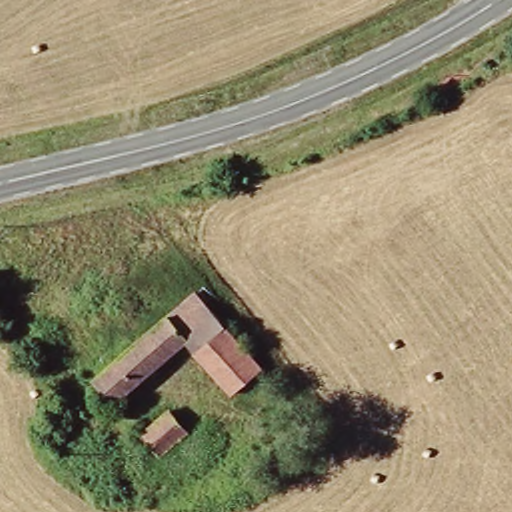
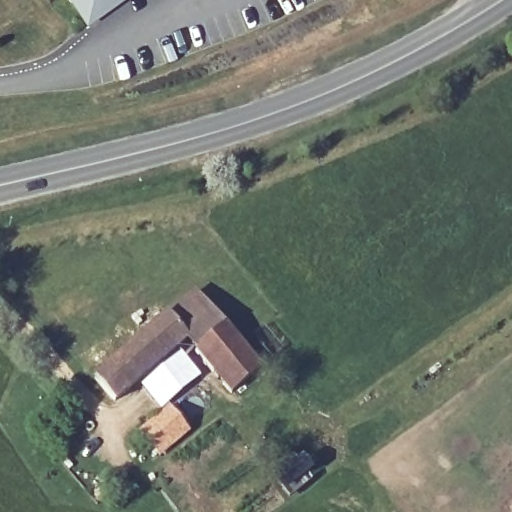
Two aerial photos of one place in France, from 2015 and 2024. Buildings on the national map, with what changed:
new [(69,0),(117,0),(86,23),(69,0)]
unchanged [(225,331),(195,357),(185,346),(187,344),(167,321),(194,297),(225,331)]
unchanged [(167,321),(187,344),(185,346),(114,407),(94,384),(167,321)]
unchanged [(225,331),(262,373),(232,398),(195,357),(225,331)]
unchanged [(142,433),(167,412),(185,433),(161,454),(142,433)]

